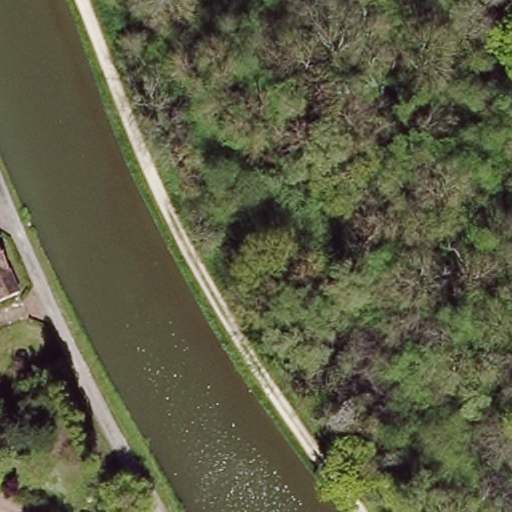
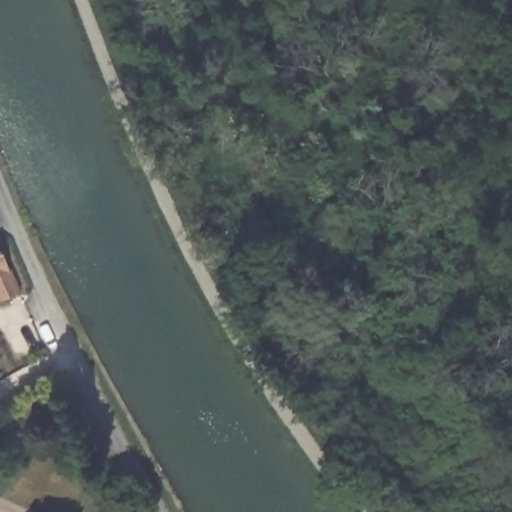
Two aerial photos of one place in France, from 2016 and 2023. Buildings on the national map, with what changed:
unchanged [(0,289),(0,240),(26,294),(25,295),(8,303),(0,289)]

